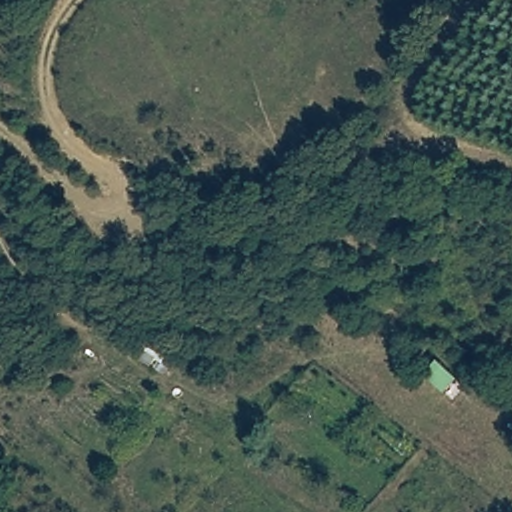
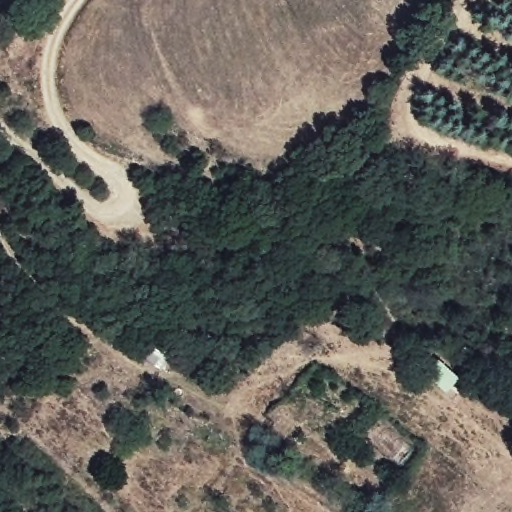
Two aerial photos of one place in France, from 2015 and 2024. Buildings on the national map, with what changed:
unchanged [(152,341),(174,352),(165,372),(142,360),(152,341)]

